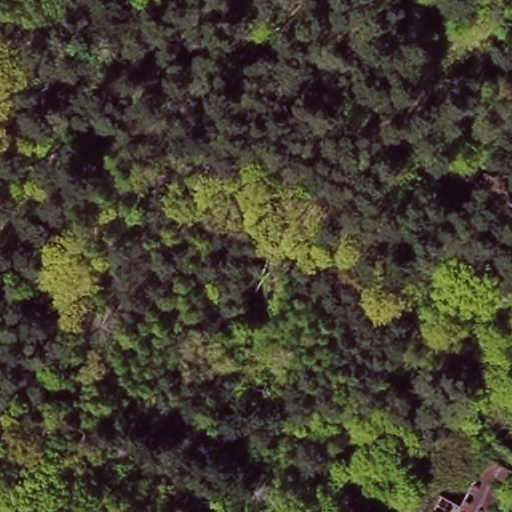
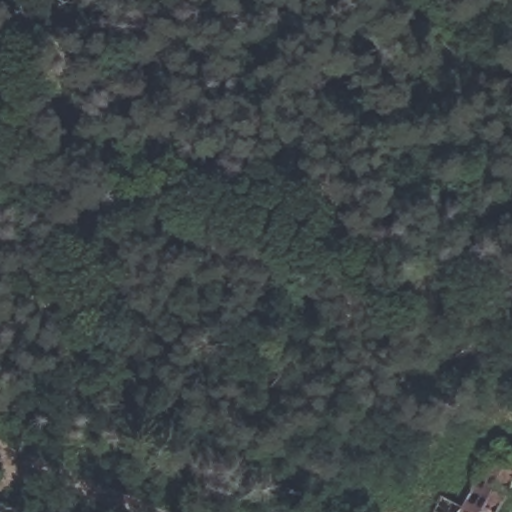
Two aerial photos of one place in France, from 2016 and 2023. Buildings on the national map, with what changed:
unchanged [(426,512),(436,493),(457,502),(491,435),(495,437),(512,446),(512,464),(488,512),(426,512)]

